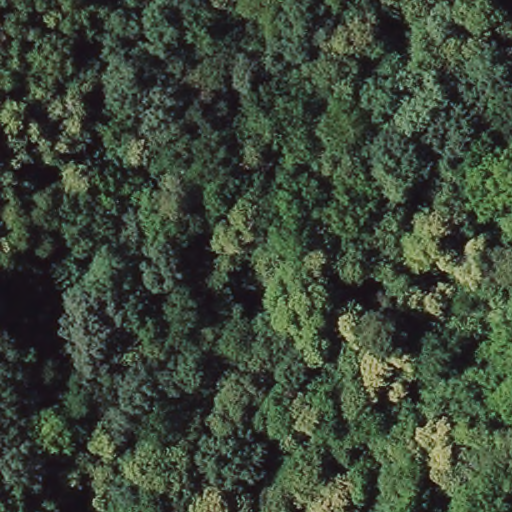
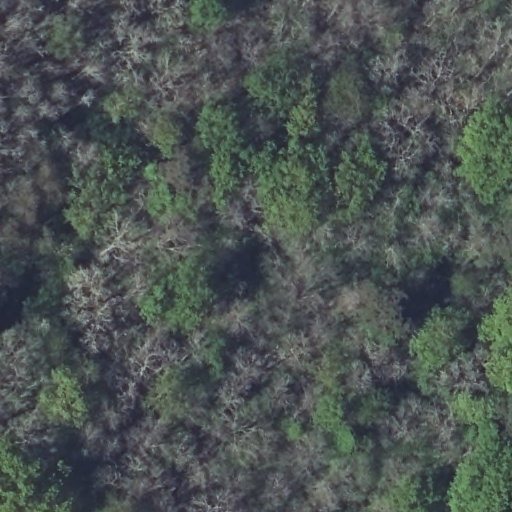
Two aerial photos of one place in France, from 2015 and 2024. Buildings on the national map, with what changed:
[]

